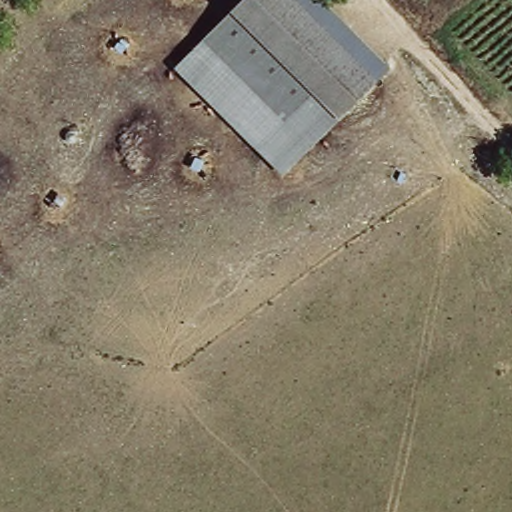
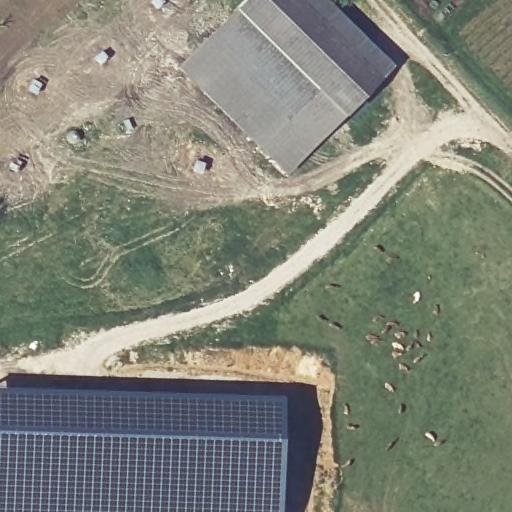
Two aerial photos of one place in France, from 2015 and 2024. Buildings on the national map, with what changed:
unchanged [(244,0),(307,0),(385,64),(300,167),(185,72),(244,0)]
new [(132,400),(283,400),(285,446),(285,512),(0,512),(0,396),(132,400)]

